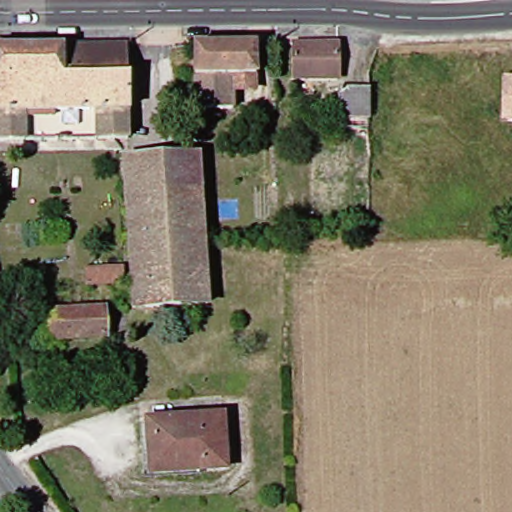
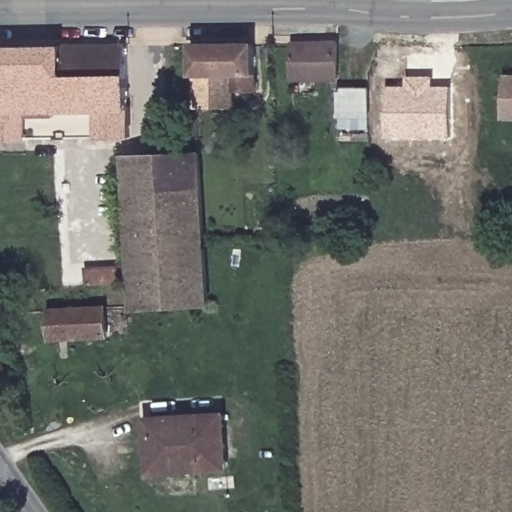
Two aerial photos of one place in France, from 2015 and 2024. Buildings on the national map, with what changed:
unchanged [(344,77),(300,79),(299,41),(343,41),(344,77)]
unchanged [(239,90),(240,111),(201,111),(201,48),(260,46),(261,78),(261,90),(239,90)]
unchanged [(139,141),(5,142),(4,51),(137,48),(139,141)]
new [(385,86),(405,86),(405,77),(433,76),(432,87),(452,87),(452,137),(387,138),(385,86)]
new [(503,124),(504,78),(512,78),(512,124),(503,124)]
unchanged [(345,115),(346,85),(375,85),(375,115),(375,125),(345,124),(345,115)]
unchanged [(137,196),(136,160),(208,157),(212,194),(137,196)]
unchanged [(218,308),(142,311),(137,196),(212,194),(215,245),(218,308)]
unchanged [(97,290),(97,274),(133,272),(135,288),(97,290)]
unchanged [(115,336),(96,337),(82,338),(60,339),(60,311),(114,308),(115,336)]
unchanged [(230,467),(207,468),(207,465),(157,467),(156,437),(152,437),(151,418),(228,414),(230,467)]

